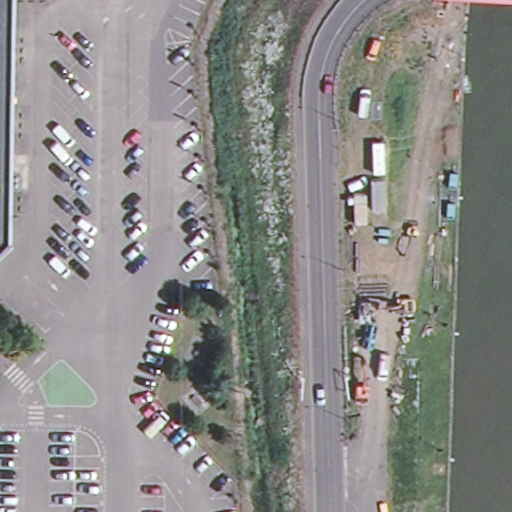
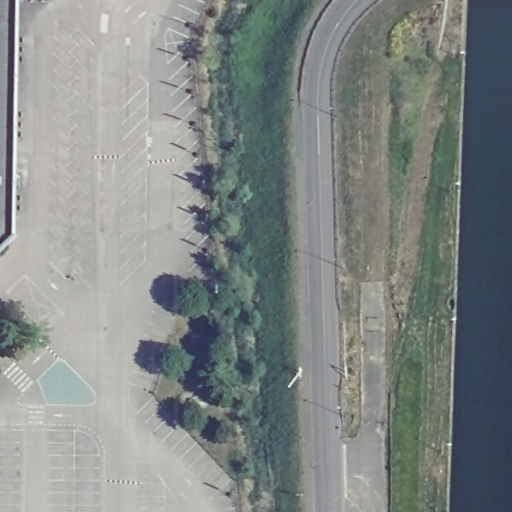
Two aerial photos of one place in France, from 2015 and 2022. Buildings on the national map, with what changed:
unchanged [(10,200),(10,241),(1,250),(0,251),(0,0),(14,0),(10,200)]

